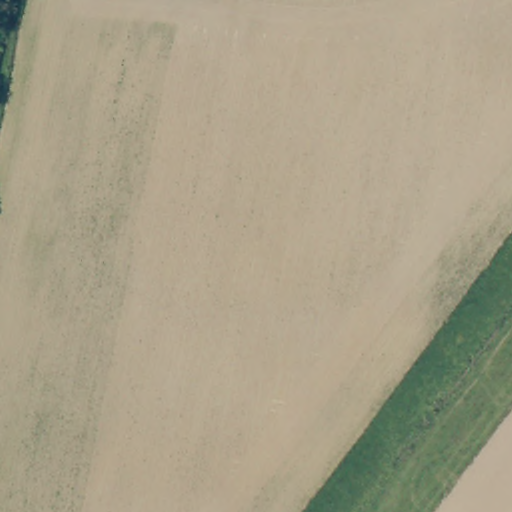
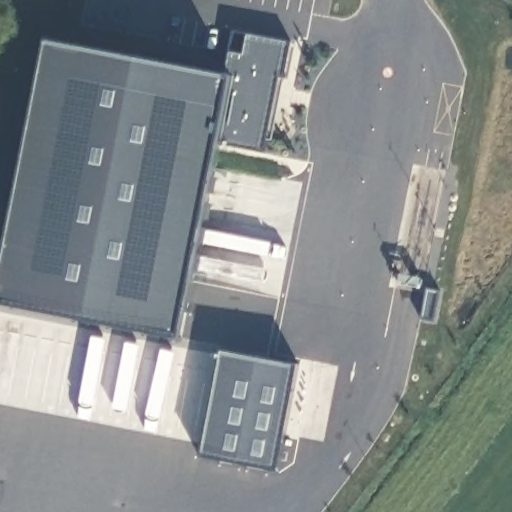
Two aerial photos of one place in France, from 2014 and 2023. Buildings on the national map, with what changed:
new [(0,286),(47,42),(227,77),(230,53),(243,55),(248,35),(289,43),(271,140),(265,139),(262,151),(219,145),(180,340),(0,305),(0,286)]
new [(416,163),(443,169),(419,292),(392,286),(416,163)]
new [(222,351),(298,365),(277,470),(202,456),(222,351)]

